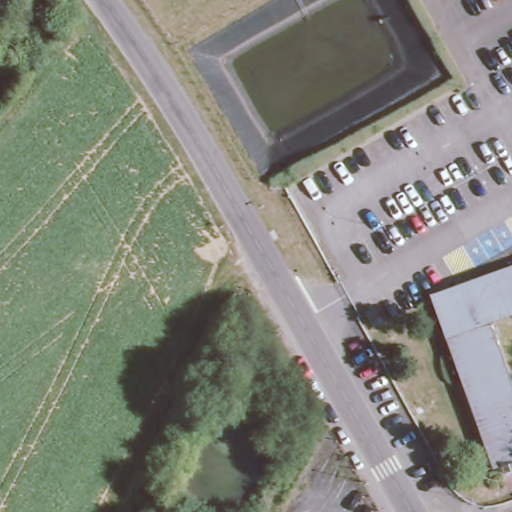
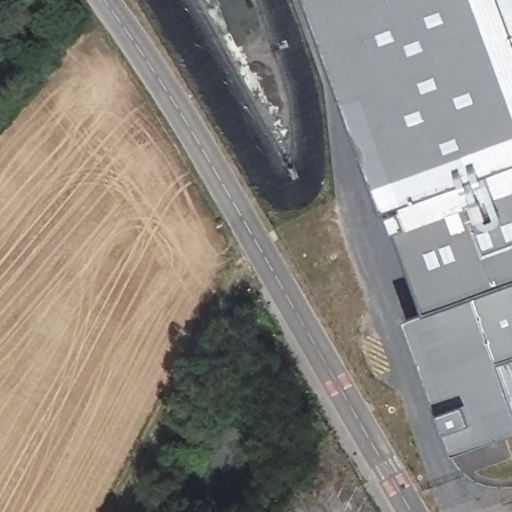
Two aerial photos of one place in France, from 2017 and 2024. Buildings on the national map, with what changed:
new [(412,319),(443,307),(405,201),(331,0),(512,0),(512,356),(505,359),(512,380),(512,432),(461,451),(412,319)]
demolished [(512,257),(512,310),(489,318),(512,384),(512,456),(489,465),(424,288),(512,257)]

